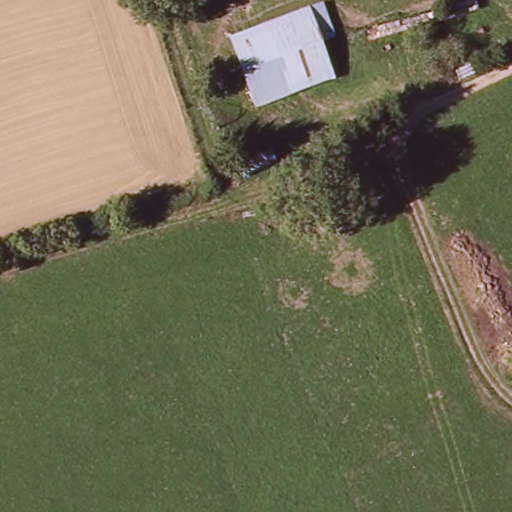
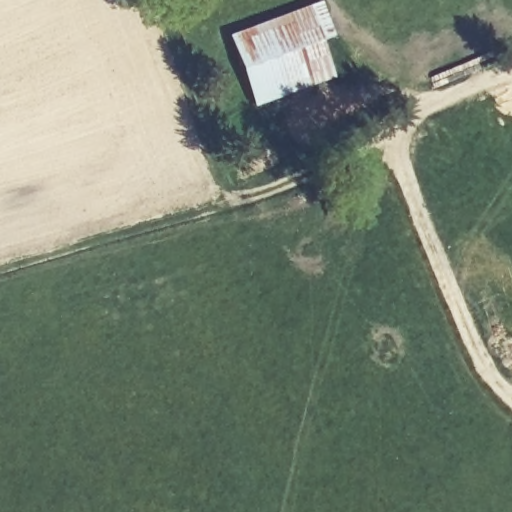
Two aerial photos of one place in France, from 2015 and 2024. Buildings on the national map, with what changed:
unchanged [(322,3),(333,35),(322,40),(335,79),(249,106),(226,38),(322,3)]

